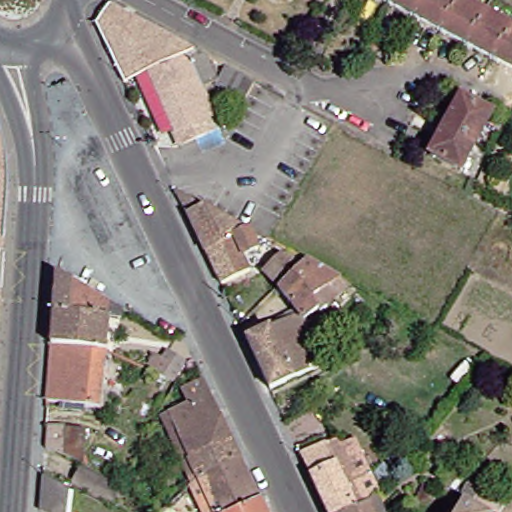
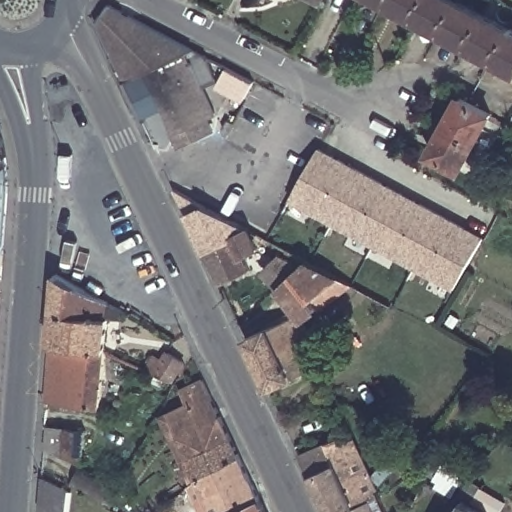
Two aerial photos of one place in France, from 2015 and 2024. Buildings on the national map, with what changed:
unchanged [(385,0),(461,0),(512,27),(512,67),(385,0)]
unchanged [(119,81),(90,24),(104,6),(202,57),(210,75),(195,81),(209,112),(169,130),(141,70),(119,81)]
unchanged [(237,101),(212,86),(223,67),(248,82),(237,101)]
unchanged [(460,170),(430,154),(460,97),(491,114),(460,170)]
unchanged [(331,125),(326,133),(310,124),(315,115),(331,125)]
unchanged [(5,169),(5,180),(5,195),(1,254),(1,279),(0,285),(0,141),(3,155),(5,169)]
new [(319,149),(361,172),(332,222),(290,199),(319,149)]
new [(361,172),(402,195),(373,244),(332,222),(361,172)]
unchanged [(199,250),(181,213),(168,189),(199,205),(243,229),(199,250)]
new [(402,195),(443,217),(414,266),(373,244),(402,195)]
new [(443,217),(483,239),(455,288),(414,266),(443,217)]
unchanged [(199,250),(243,229),(252,248),(237,255),(243,268),(215,282),(199,250)]
unchanged [(347,283),(299,320),(294,313),(273,287),(260,273),(277,257),(279,258),(283,250),(302,260),(347,283)]
unchanged [(47,273),(101,302),(94,351),(41,345),(47,273)]
unchanged [(241,338),(294,313),(299,320),(319,362),(264,388),(241,338)]
unchanged [(94,351),(88,407),(37,401),(41,345),(94,351)]
unchanged [(183,363),(171,381),(151,372),(145,369),(155,355),(161,359),(167,352),(183,363)]
unchanged [(182,458),(184,457),(164,412),(183,403),(177,390),(198,380),(234,457),(193,476),(190,477),(182,458)]
unchanged [(78,473),(52,462),(58,450),(42,442),(41,441),(41,422),(80,425),(78,458),(84,461),(78,473)]
unchanged [(339,512),(322,512),(295,453),(331,437),(364,500),(339,512)]
unchanged [(254,498),(224,512),(209,512),(193,476),(234,457),(254,498)]
unchanged [(465,470),(450,495),(438,487),(443,478),(438,475),(447,460),(465,470)]
unchanged [(65,512),(43,512),(39,510),(41,477),(68,490),(65,512)]
unchanged [(364,500),(366,500),(371,491),(381,512),(339,512),(364,500)]
unchanged [(254,498),(260,512),(224,512),(254,498)]
unchanged [(458,500),(479,512),(451,512),(458,500)]

